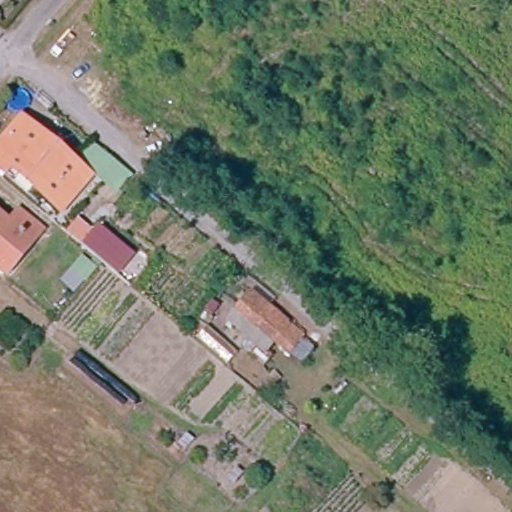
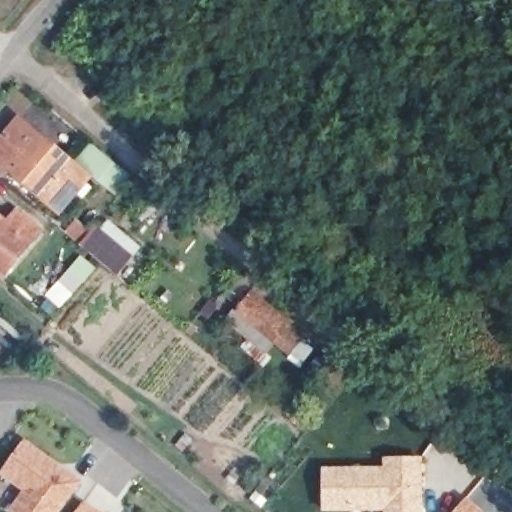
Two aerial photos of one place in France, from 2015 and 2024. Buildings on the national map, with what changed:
unchanged [(5,177),(0,172),(0,125),(14,105),(72,152),(86,136),(125,164),(106,186),(90,175),(56,215),(8,172),(5,177)]
unchanged [(18,208),(41,227),(0,276),(0,216),(6,221),(18,208)]
new [(125,261),(114,275),(79,245),(65,233),(73,224),(87,236),(90,232),(125,261)]
unchanged [(288,333),(276,347),(240,317),(252,303),(288,333)]
new [(84,481),(62,512),(10,512),(8,510),(23,491),(0,473),(24,440),(84,481)]
new [(384,468),(383,457),(423,456),(425,512),(385,512),(385,511),(323,511),(323,467),(384,468)]
new [(463,499),(479,512),(452,512),(463,499)]
new [(101,512),(78,512),(86,500),(101,512)]

